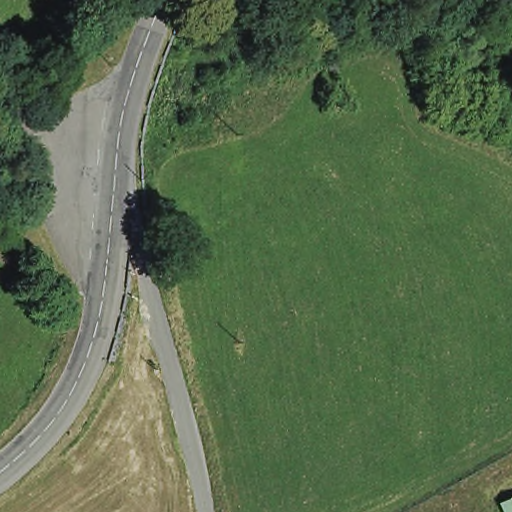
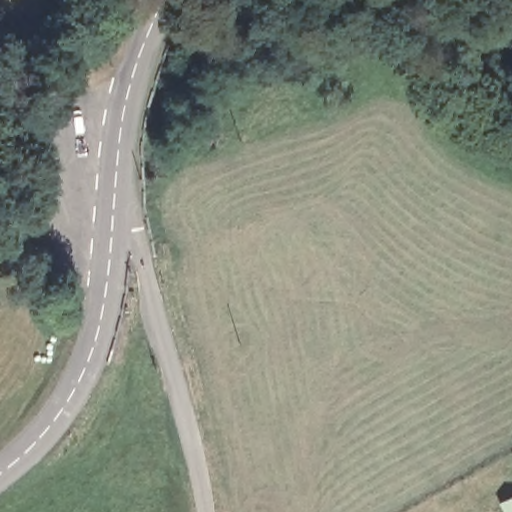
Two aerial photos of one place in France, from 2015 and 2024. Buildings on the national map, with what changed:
unchanged [(512,496),(512,512),(504,512),(500,502),(512,496)]

